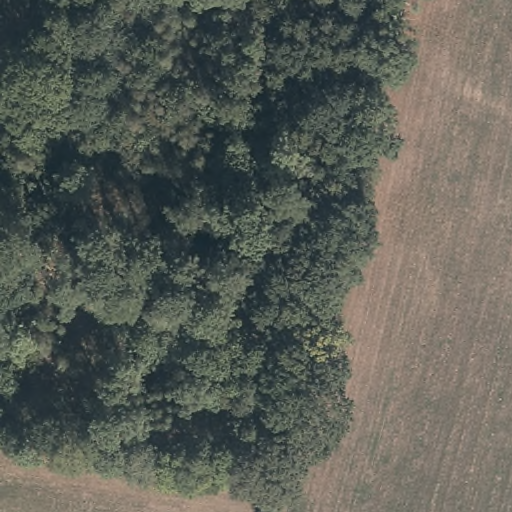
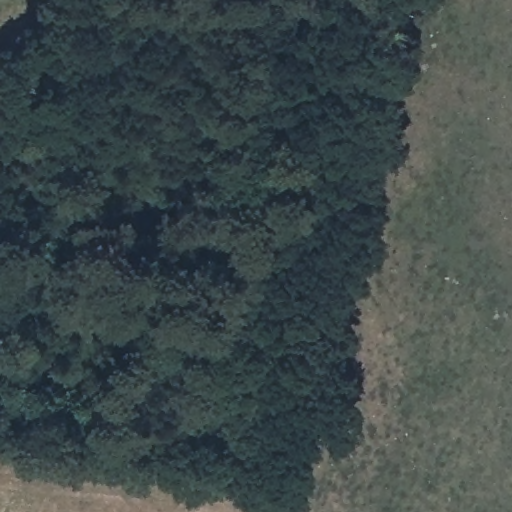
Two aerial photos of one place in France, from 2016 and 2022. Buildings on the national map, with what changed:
[]

